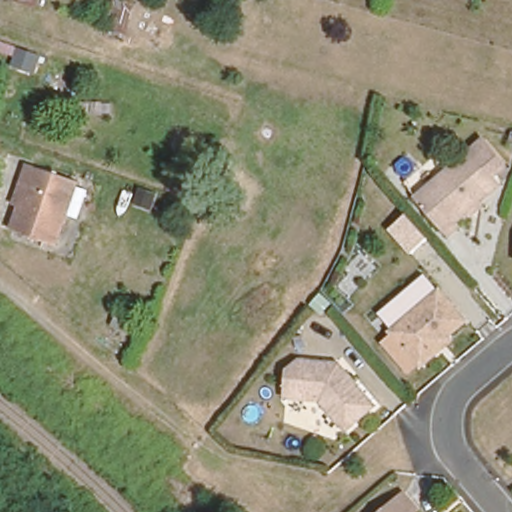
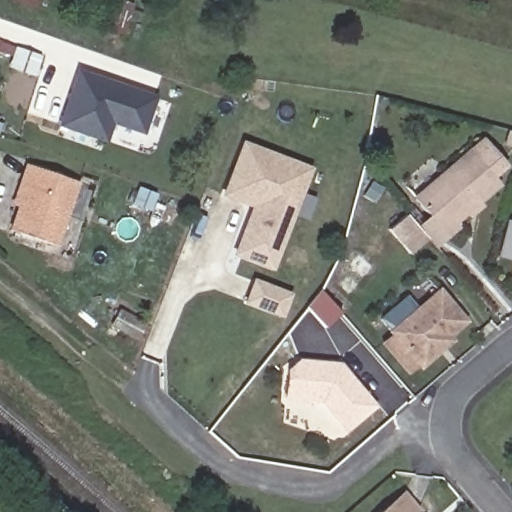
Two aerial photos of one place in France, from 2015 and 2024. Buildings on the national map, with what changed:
unchanged [(130,0),(126,14),(115,10),(111,24),(101,21),(106,0),(130,0)]
new [(144,135),(113,125),(105,145),(56,126),(76,68),(156,95),(144,135)]
unchanged [(468,212),(463,206),(451,216),(455,222),(439,234),(409,195),(483,137),(502,161),(491,170),(498,179),(475,197),(479,202),(468,212)]
new [(242,142),(313,167),(274,271),(232,256),(251,207),(221,196),(242,142)]
unchanged [(76,179),(55,239),(11,224),(18,204),(11,201),(16,185),(25,162),(76,179)]
new [(402,214),(423,239),(406,254),(385,229),(402,214)]
new [(254,280),(294,292),(284,318),(243,303),(254,280)]
unchanged [(436,352),(416,369),(387,335),(436,292),(462,322),(443,338),(447,343),(436,352)]
unchanged [(143,322),(135,337),(109,323),(116,308),(143,322)]
unchanged [(352,376),(365,387),(379,403),(353,425),(328,396),(293,397),(295,368),(307,358),(341,362),(352,376)]
unchanged [(408,504),(415,512),(366,512),(399,483),(413,500),(408,504)]

